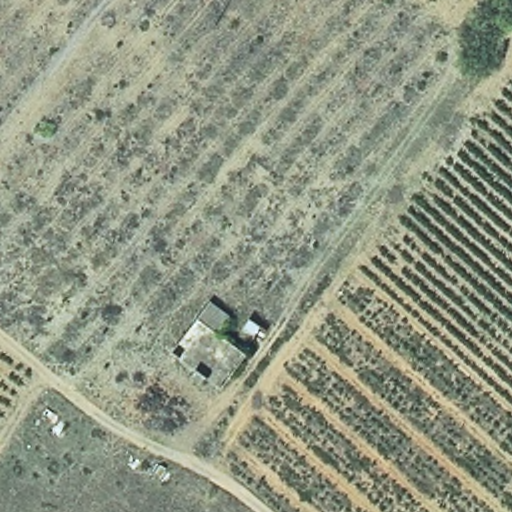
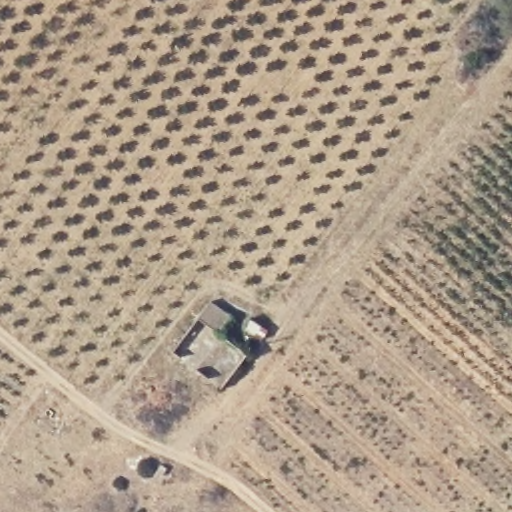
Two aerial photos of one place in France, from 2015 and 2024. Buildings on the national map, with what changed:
unchanged [(208,296),(231,312),(221,329),(197,315),(208,296)]

